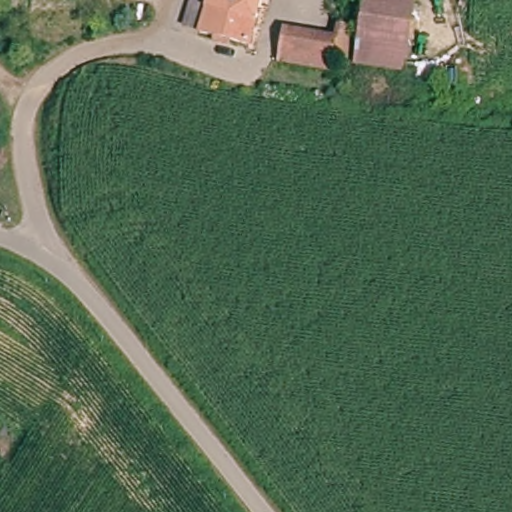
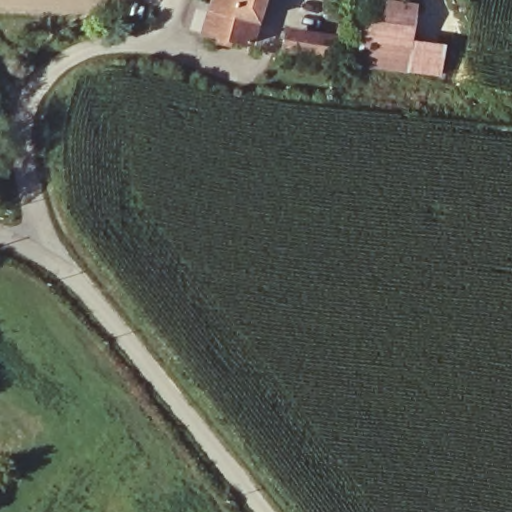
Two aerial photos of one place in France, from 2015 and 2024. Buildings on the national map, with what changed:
unchanged [(251,41),(188,25),(195,0),(261,0),(251,41)]
unchanged [(406,75),(356,69),(364,0),(415,0),(406,75)]
unchanged [(323,70),(284,64),(287,40),(290,26),(334,32),(336,22),(352,24),(347,64),(336,62),(333,71),(323,70)]
new [(410,37),(445,42),(441,78),(406,75),(410,37)]

